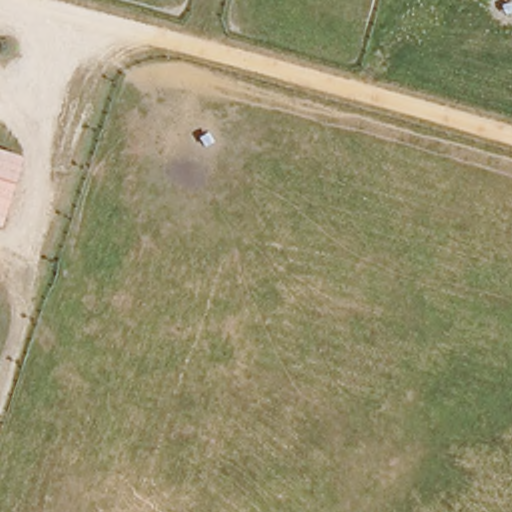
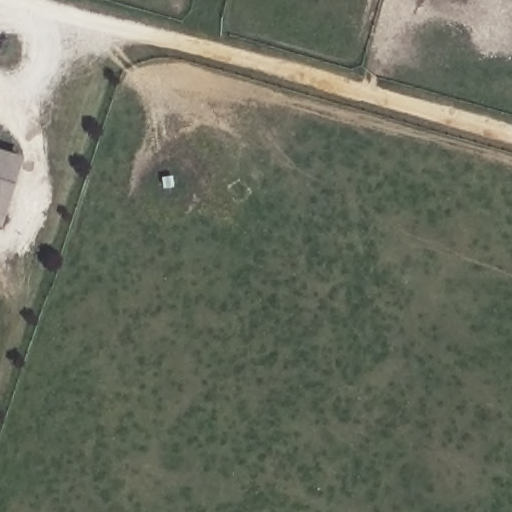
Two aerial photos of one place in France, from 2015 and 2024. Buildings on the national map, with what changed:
unchanged [(20,161),(1,227),(0,226),(0,155),(20,161)]

